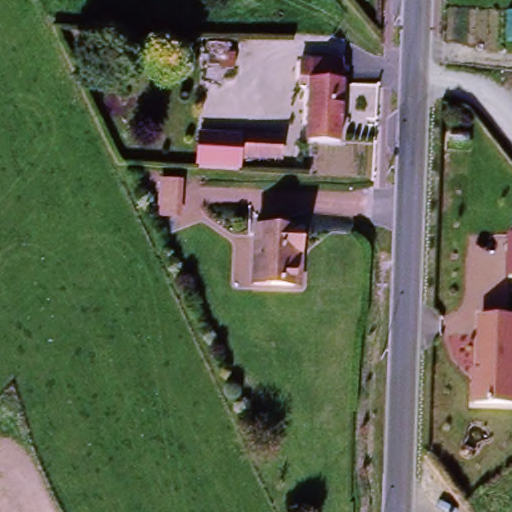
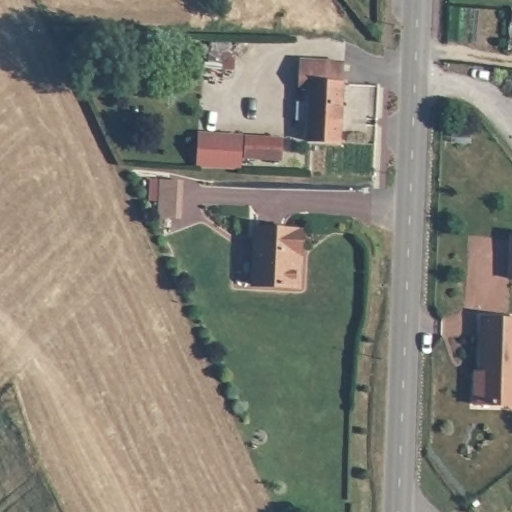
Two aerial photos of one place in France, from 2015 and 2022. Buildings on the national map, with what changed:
unchanged [(207,55),(234,57),(232,70),(206,69),(207,55)]
unchanged [(299,77),(300,55),(344,58),(343,80),(340,139),(308,137),(311,78),(299,77)]
unchanged [(238,161),(195,159),(197,129),(240,132),(238,161)]
unchanged [(280,135),(279,155),(245,154),(247,134),(280,135)]
unchanged [(250,283),(250,276),(254,227),(274,228),(295,229),(294,263),(300,263),(299,279),(299,286),(271,285),(250,283)]
unchanged [(477,383),(480,383),(484,317),(512,319),(512,406),(475,405),(477,383)]

